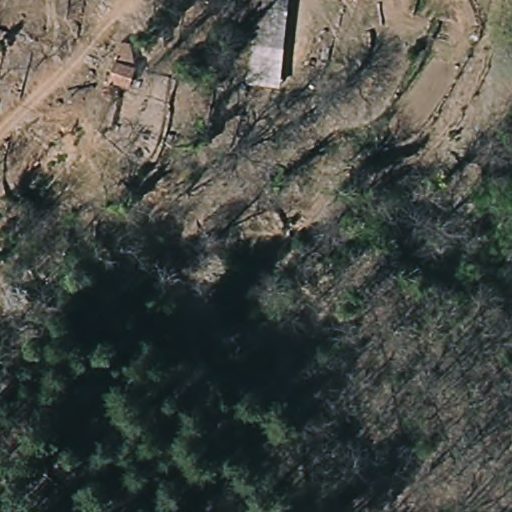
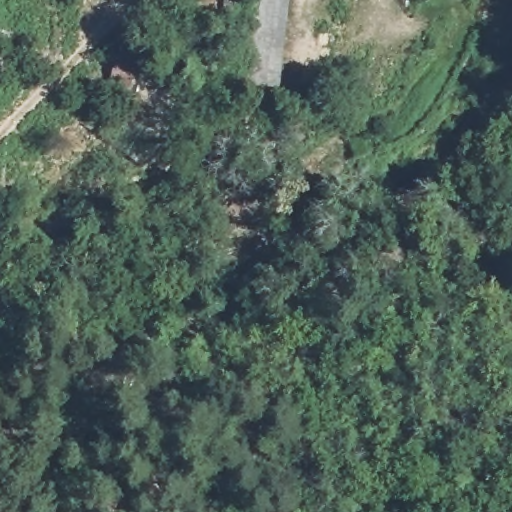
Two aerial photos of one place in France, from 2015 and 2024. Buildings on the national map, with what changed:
unchanged [(251,51),(254,0),(289,0),(288,52),(251,51)]
unchanged [(119,59),(142,64),(135,86),(111,80),(119,59)]

